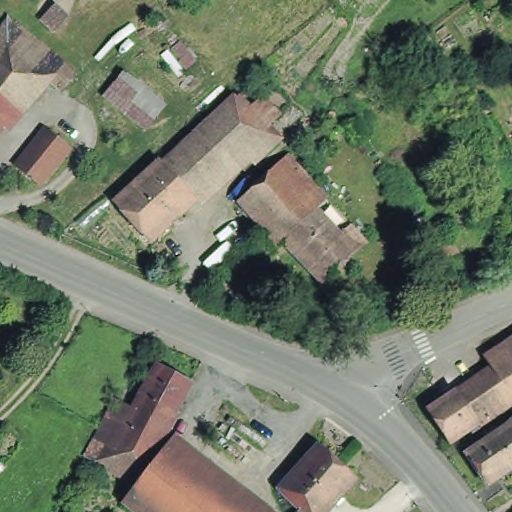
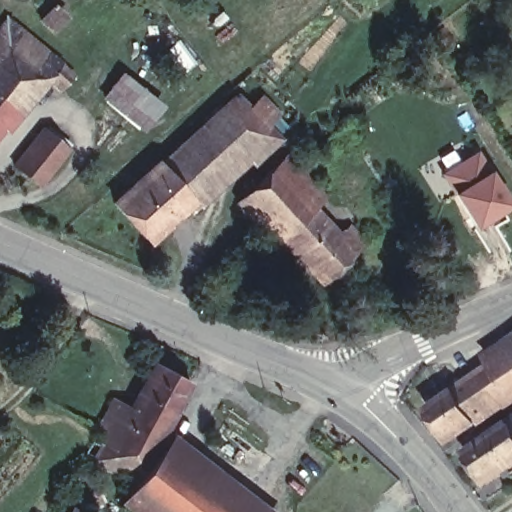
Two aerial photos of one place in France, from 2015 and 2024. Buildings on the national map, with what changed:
unchanged [(0,39),(9,28),(51,64),(75,84),(66,95),(48,80),(3,133),(0,130),(0,39)]
unchanged [(166,104),(144,135),(103,95),(123,68),(166,104)]
unchanged [(241,150),(239,149),(236,151),(208,120),(237,93),(249,105),(260,94),(278,112),(267,123),(278,134),(261,152),(251,161),(241,150)]
unchanged [(114,200),(158,160),(161,163),(176,149),(208,120),(236,151),(204,180),(189,194),(191,197),(147,237),(114,200)]
unchanged [(18,162),(48,127),(72,147),(41,183),(18,162)]
unchanged [(0,137),(0,130),(3,133),(0,137)]
new [(512,195),(512,207),(479,231),(440,169),(477,147),(512,195)]
unchanged [(352,229),(368,245),(357,255),(327,284),(283,238),(260,213),(254,218),(242,204),(245,198),(276,169),(289,158),(329,200),(323,206),(319,202),(313,208),(341,239),(352,229)]
unchanged [(422,251),(448,240),(453,253),(430,263),(428,264),(424,257),(422,251)]
unchanged [(495,366),(512,354),(512,398),(480,420),(459,390),(495,366)]
unchanged [(96,466),(92,463),(113,424),(124,431),(133,413),(157,368),(188,384),(164,430),(154,448),(135,487),(96,466)]
unchanged [(480,420),(453,438),(432,408),(459,389),(459,390),(480,420)]
unchanged [(494,486),(474,457),(512,430),(512,473),(494,486)]
demolished [(278,484),(317,443),(334,459),(296,501),(278,484)]
unchanged [(153,512),(131,495),(163,453),(188,473),(158,512),(153,512)]
demolished [(334,459),(352,476),(319,512),(308,512),(299,504),(296,501),(334,459)]
unchanged [(158,512),(188,473),(240,512),(158,512)]
demolished [(308,512),(292,512),(299,504),(308,512)]

